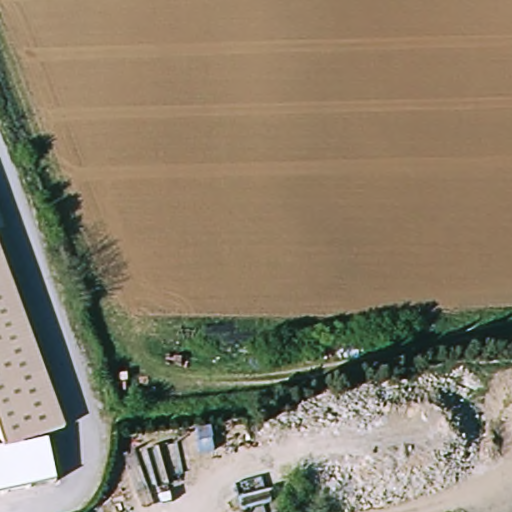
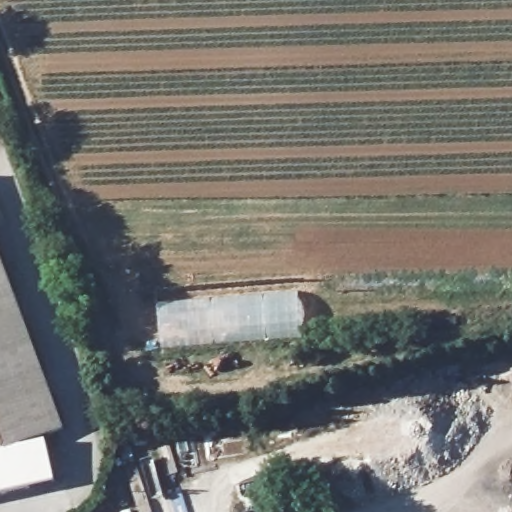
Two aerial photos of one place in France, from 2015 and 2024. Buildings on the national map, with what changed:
new [(162,348),(157,306),(298,294),(302,337),(162,348)]
unchanged [(2,449),(0,445),(0,303),(43,431),(2,449)]
unchanged [(48,433),(58,483),(18,493),(10,456),(9,449),(38,436),(48,433)]
unchanged [(0,494),(0,457),(10,456),(16,491),(0,494)]

